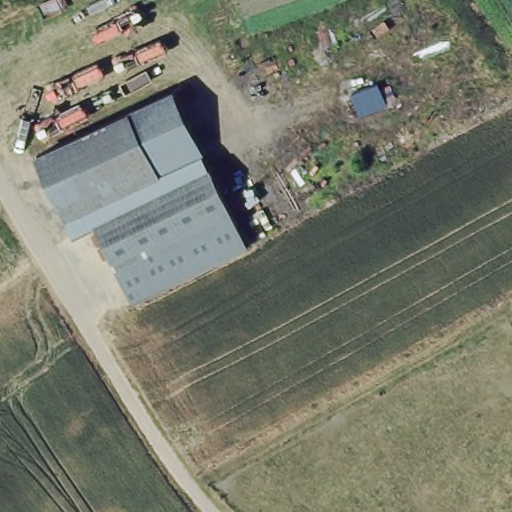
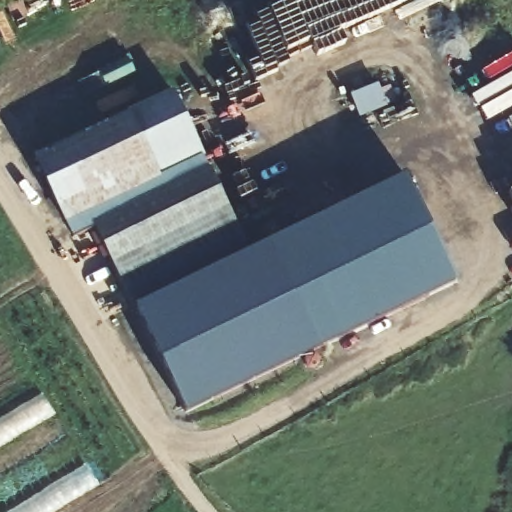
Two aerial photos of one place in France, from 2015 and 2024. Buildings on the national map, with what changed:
unchanged [(349,95),(378,82),(388,106),(358,118),(349,95)]
unchanged [(169,100),(206,178),(94,230),(97,236),(93,238),(69,246),(33,168),(169,100)]
new [(454,282),(319,348),(269,241),(406,176),(454,282)]
unchanged [(241,256),(135,308),(121,282),(97,236),(94,230),(206,178),(229,231),(241,256)]
new [(241,256),(269,241),(319,348),(186,412),(135,308),(241,256)]
new [(98,485),(54,512),(0,512),(0,419),(40,394),(98,485)]

